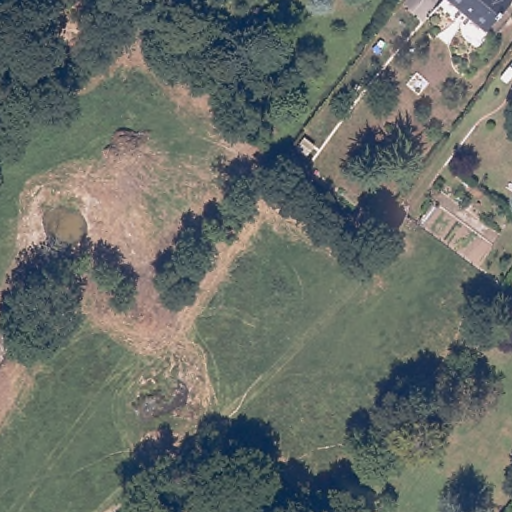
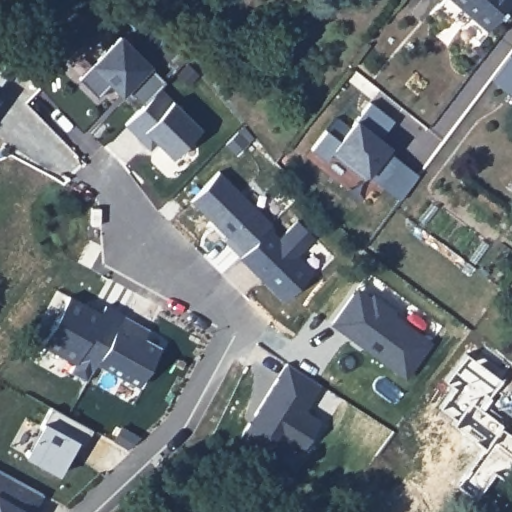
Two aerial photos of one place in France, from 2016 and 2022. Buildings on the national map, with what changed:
unchanged [(512,0),(512,4),(486,36),(444,2),(446,0),(512,0)]
new [(158,147),(151,152),(125,126),(145,105),(131,90),(121,100),(108,87),(99,96),(83,80),(96,70),(91,67),(121,37),(152,69),(165,83),(160,89),(173,102),(200,128),(170,159),(158,147)]
new [(13,71),(0,88),(0,60),(13,71)]
new [(401,199),(381,182),(367,171),(364,175),(331,149),(325,157),(311,145),(325,126),(339,137),(370,98),(394,117),(380,135),(390,142),(387,146),(401,157),(420,173),(401,199)]
new [(226,239),(230,235),(193,199),(222,170),(275,222),(270,227),(281,237),(300,220),(316,236),(297,254),(314,271),(286,299),(271,283),(242,255),(226,239)]
new [(67,292),(99,311),(103,302),(120,312),(120,313),(94,358),(83,379),(66,370),(72,360),(39,341),(67,292)]
new [(135,322),(146,328),(141,337),(157,346),(136,382),(94,358),(120,313),(135,322)]
new [(322,387),(306,411),(322,422),(301,452),(286,442),(275,462),(240,439),(287,365),(322,387)]
new [(49,403),(91,427),(82,443),(75,439),(56,472),(22,452),(49,403)]
new [(42,492),(31,512),(0,512),(0,468),(42,492)]

